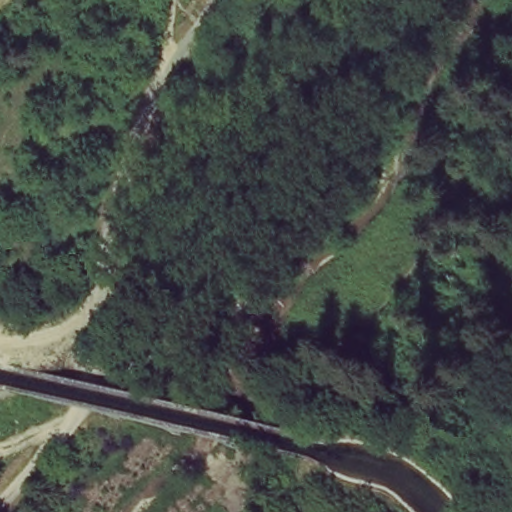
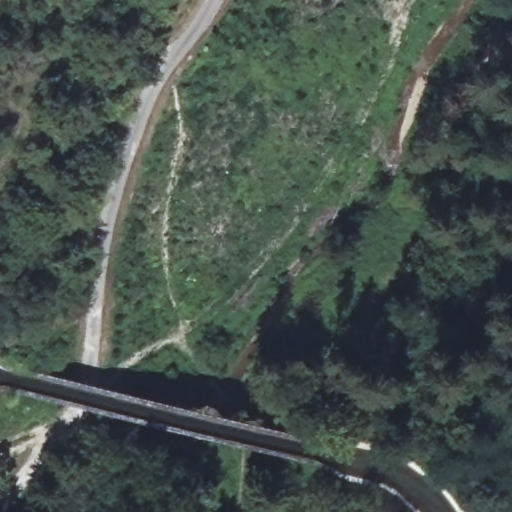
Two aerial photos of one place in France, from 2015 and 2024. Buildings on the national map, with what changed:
unchanged [(485,401),(512,380),(512,408),(499,419),(485,401)]

